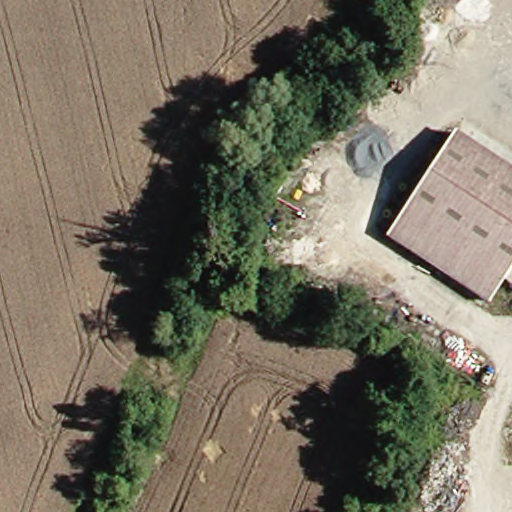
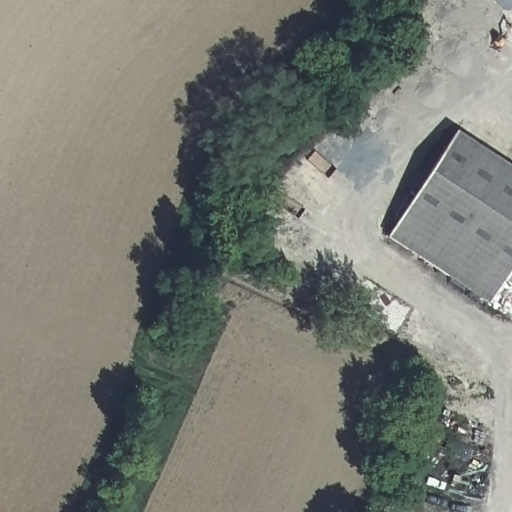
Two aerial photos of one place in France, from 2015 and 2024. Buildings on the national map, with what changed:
unchanged [(512,289),(496,280),(481,302),(380,237),(447,137),(512,178),(512,289)]

